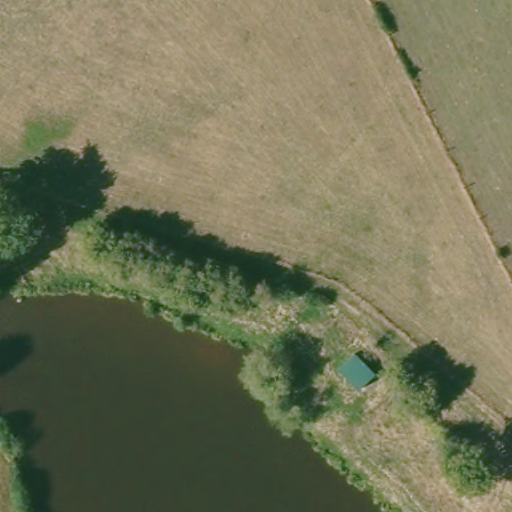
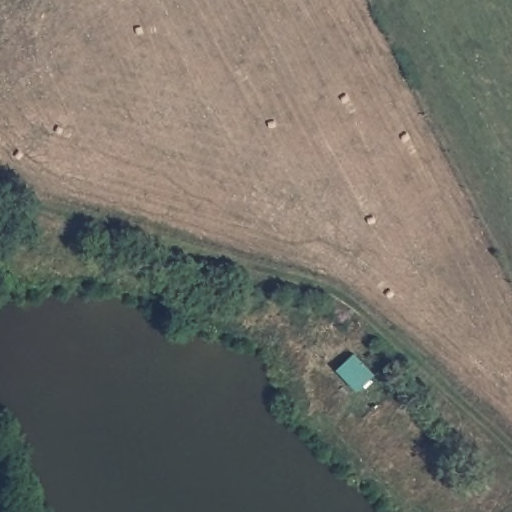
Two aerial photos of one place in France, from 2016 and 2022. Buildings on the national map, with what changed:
unchanged [(362,350),(386,379),(364,398),(340,367),(362,350)]

